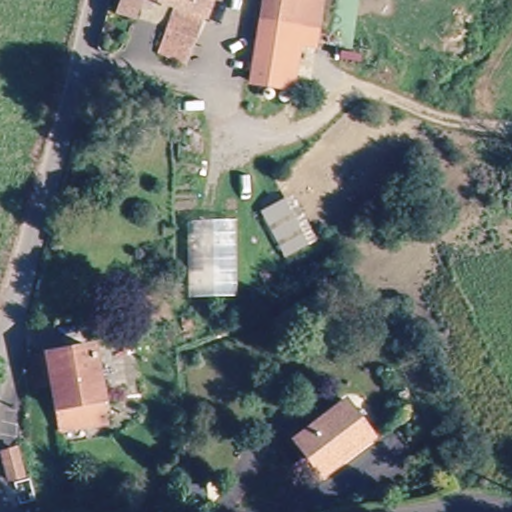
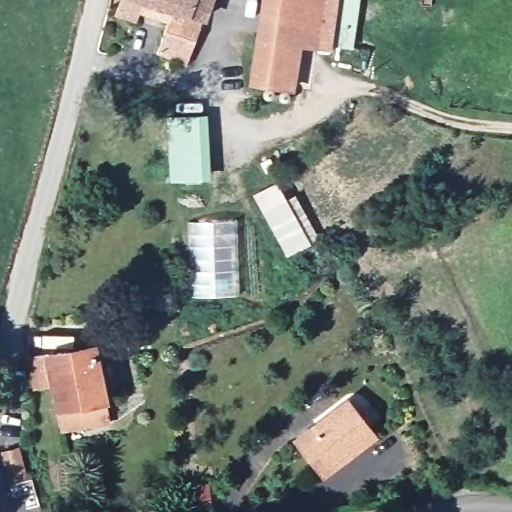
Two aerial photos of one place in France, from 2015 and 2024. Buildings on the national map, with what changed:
unchanged [(122,6),(124,0),(149,0),(143,14),(122,6)]
unchanged [(171,7),(154,0),(207,0),(199,19),(171,7)]
unchanged [(353,47),(316,43),(316,51),(300,49),(295,91),(255,88),(261,16),(263,0),(357,0),(353,47)]
unchanged [(171,7),(199,19),(189,65),(158,58),(171,7)]
new [(207,114),(210,179),(201,180),(201,184),(169,184),(166,116),(207,114)]
unchanged [(294,195),(319,242),(285,259),(260,211),(294,195)]
unchanged [(222,221),(223,242),(190,243),(189,221),(222,221)]
unchanged [(51,370),(31,374),(28,357),(92,344),(109,428),(63,435),(51,370)]
unchanged [(314,472),(292,435),(342,408),(350,403),(371,446),(362,450),(316,472),(314,472)]

